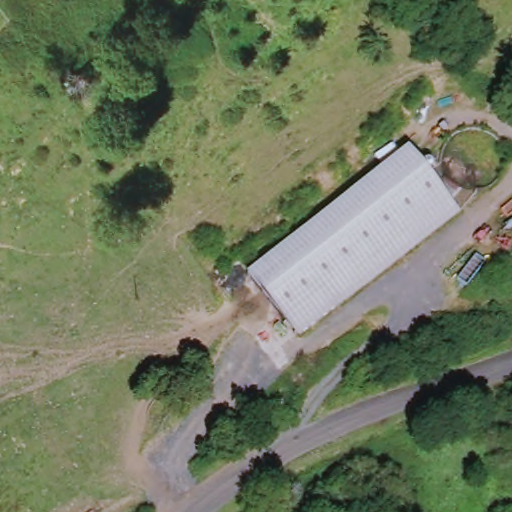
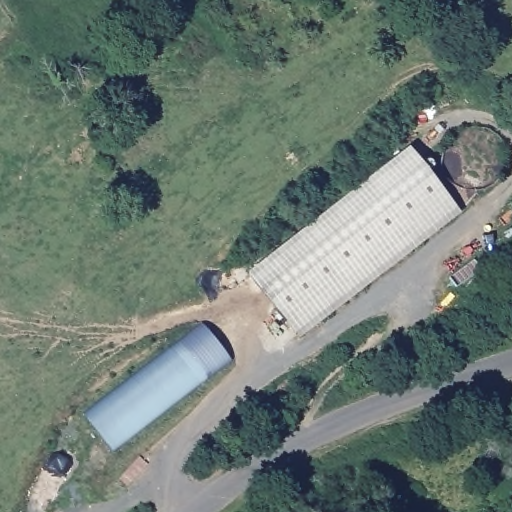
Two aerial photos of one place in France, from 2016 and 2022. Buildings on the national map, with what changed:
unchanged [(410,150),(460,214),(300,337),(251,273),(410,150)]
new [(85,413),(201,321),(232,361),(112,452),(85,413)]

